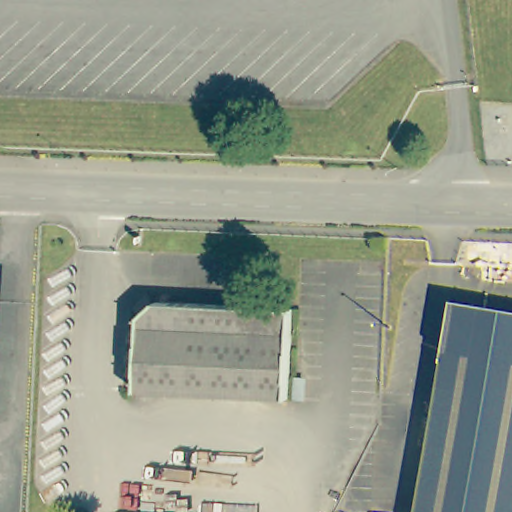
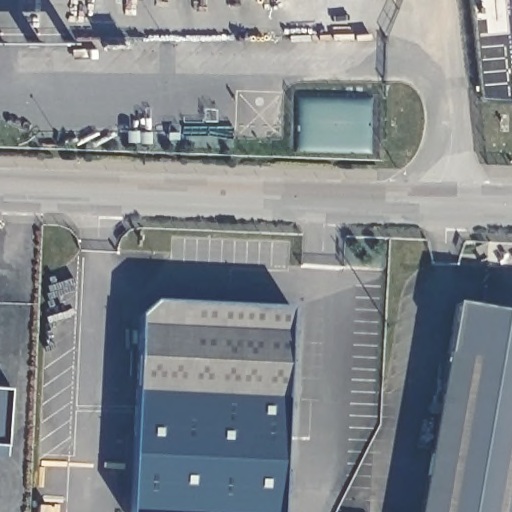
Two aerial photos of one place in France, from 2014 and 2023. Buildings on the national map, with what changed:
unchanged [(287,399),(135,392),(139,316),(132,308),(146,295),(153,303),(154,302),(291,309),(287,399)]
unchanged [(512,314),(512,512),(419,512),(456,305),(512,314)]
new [(8,387),(4,443),(5,454),(0,453),(0,386),(8,387)]
new [(287,399),(281,512),(130,512),(135,392),(287,399)]

